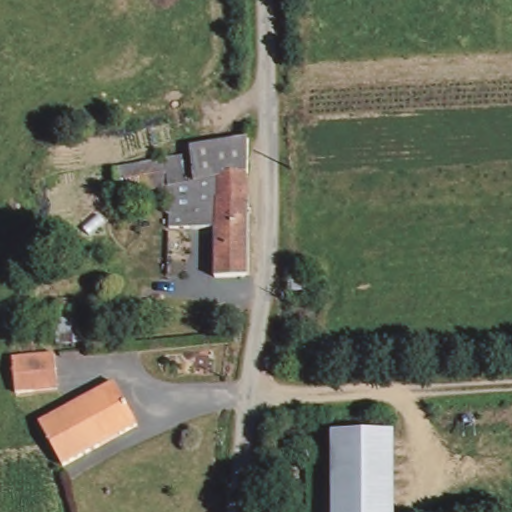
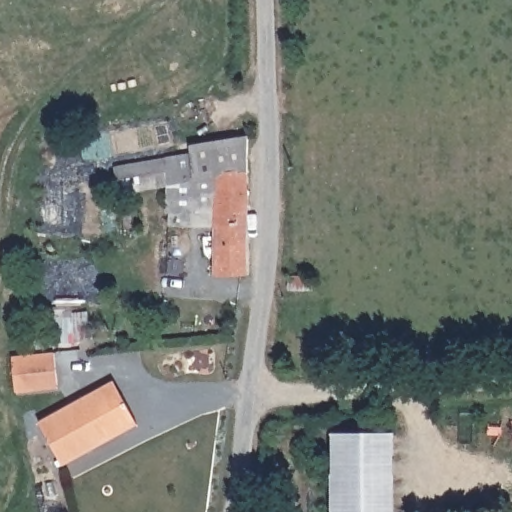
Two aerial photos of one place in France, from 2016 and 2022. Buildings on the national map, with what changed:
unchanged [(221,277),(219,230),(170,231),(171,215),(187,215),(187,187),(141,193),(140,186),(119,189),(119,169),(192,157),(194,145),(249,140),(251,277),(221,277)]
unchanged [(58,308),(59,298),(83,299),(86,350),(56,348),(57,338),(50,337),(50,307),(58,308)]
unchanged [(35,392),(26,393),(16,395),(10,355),(53,349),(54,373),(58,390),(35,392)]
unchanged [(116,380),(140,426),(65,466),(42,422),(116,380)]
unchanged [(398,429),(395,512),(335,512),(338,427),(398,429)]

